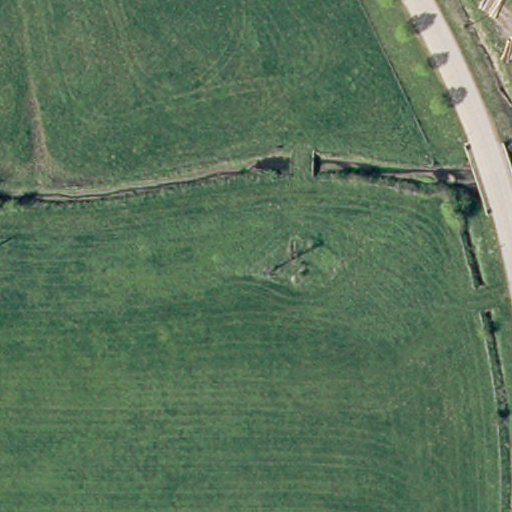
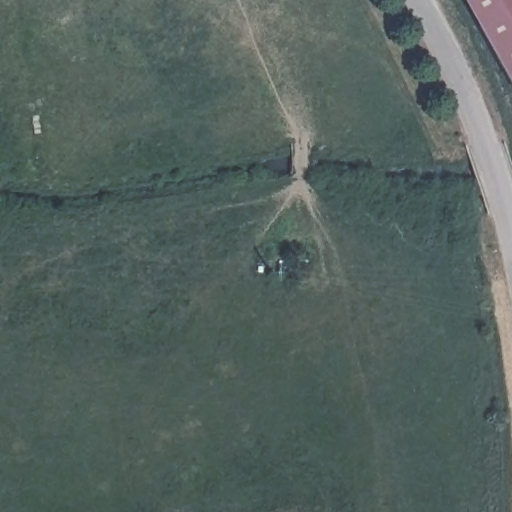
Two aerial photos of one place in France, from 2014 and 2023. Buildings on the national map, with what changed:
new [(464,0),(512,0),(512,87),(464,0)]

